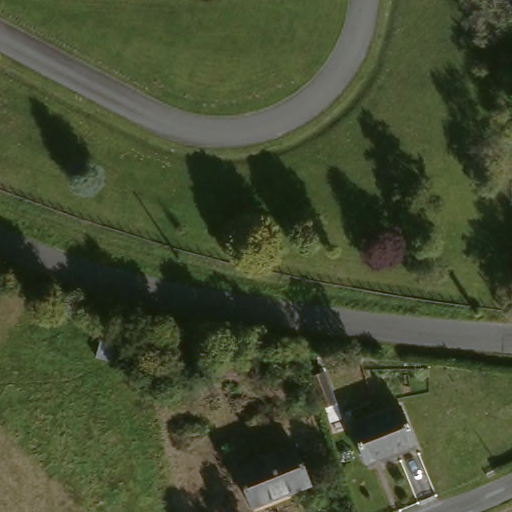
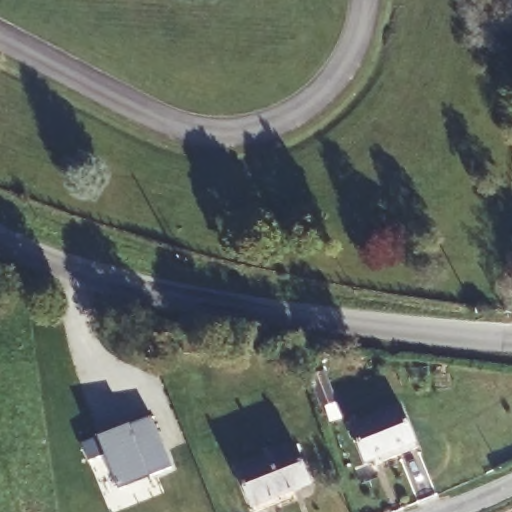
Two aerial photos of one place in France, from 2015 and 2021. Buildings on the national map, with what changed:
unchanged [(329,362),(343,394),(325,402),(312,369),(329,362)]
unchanged [(406,403),(423,445),(390,459),(387,453),(370,459),(357,421),(406,403)]
new [(99,438),(131,425),(153,417),(173,467),(151,477),(119,490),(105,454),(91,460),(84,443),(99,438)]
unchanged [(297,438),(314,480),(255,502),(240,461),(297,438)]

